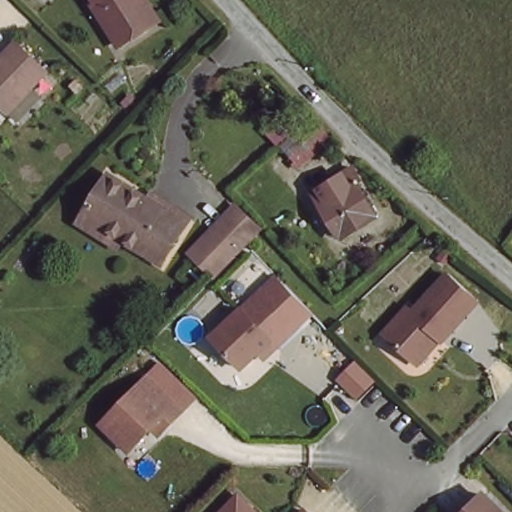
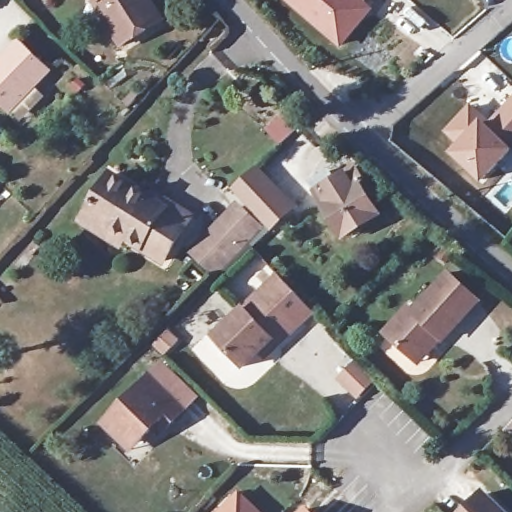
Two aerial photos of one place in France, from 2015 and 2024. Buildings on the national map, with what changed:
unchanged [(103,1),(102,0),(154,0),(166,20),(128,46),(118,24),(113,26),(99,3),(103,1)]
new [(374,9),(341,48),(284,0),(366,0),(365,1),(374,9)]
unchanged [(21,40),(50,66),(13,111),(4,104),(0,109),(0,58),(3,61),(21,40)]
new [(512,151),(481,184),(450,153),(457,144),(444,132),(470,104),(490,122),(512,99),(512,150),(512,151)]
unchanged [(360,183),(378,217),(342,239),(314,188),(311,182),(330,171),(334,178),(359,165),(366,179),(360,183)]
new [(256,170),(293,208),(270,230),(240,199),(233,191),(256,170)]
unchanged [(90,217),(98,204),(119,173),(195,221),(172,259),(133,234),(129,240),(90,217)]
unchanged [(190,251),(240,199),(270,230),(214,279),(190,251)]
unchanged [(417,359),(388,332),(411,307),(416,311),(451,273),(481,300),(445,339),(443,337),(421,362),(417,359)]
unchanged [(242,366),(213,335),(263,289),(277,275),(300,300),(312,312),(297,325),(277,345),(264,356),(259,350),(242,366)]
new [(352,365),(368,381),(353,396),(336,380),(352,365)]
unchanged [(116,433),(102,420),(149,373),(183,406),(160,430),(153,423),(137,439),(130,446),(116,433)]
unchanged [(245,488),(270,512),(222,512),(245,488)]
unchanged [(507,512),(469,512),(488,493),(507,512)]
unchanged [(312,503),(321,512),(302,512),(312,503)]

